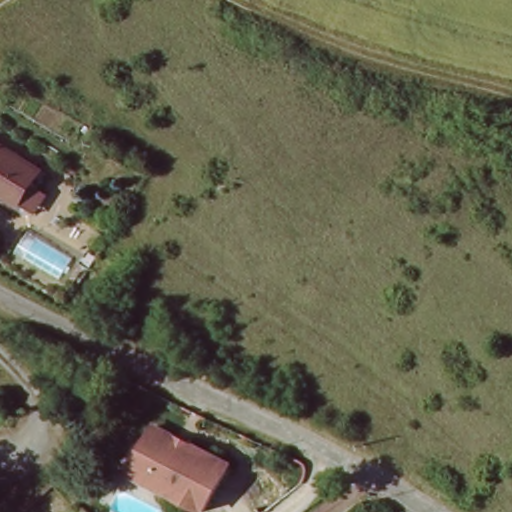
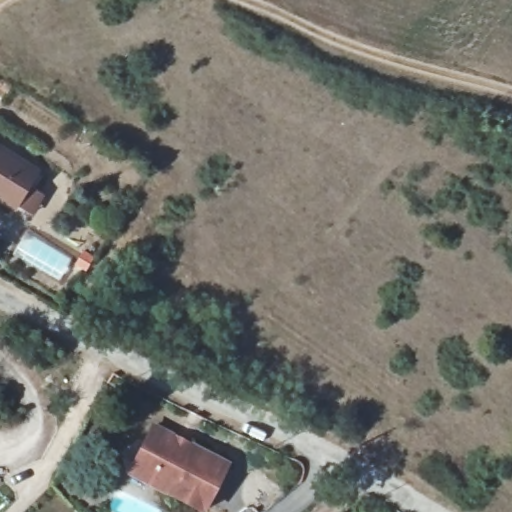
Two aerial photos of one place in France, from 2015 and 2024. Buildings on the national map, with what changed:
unchanged [(16,204),(0,195),(0,145),(38,167),(16,204)]
unchanged [(231,467),(208,512),(204,512),(171,494),(170,496),(145,484),(130,476),(155,427),(185,443),(231,467)]

